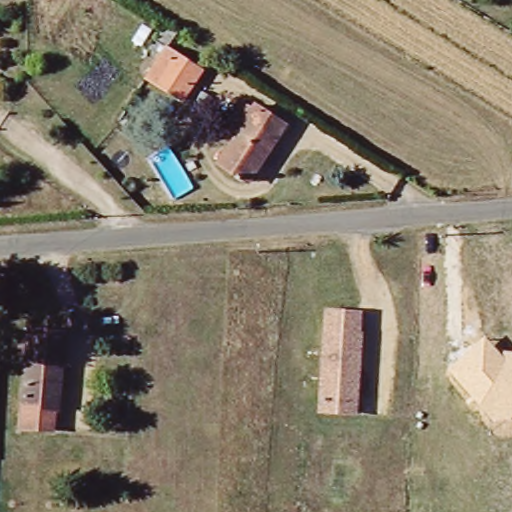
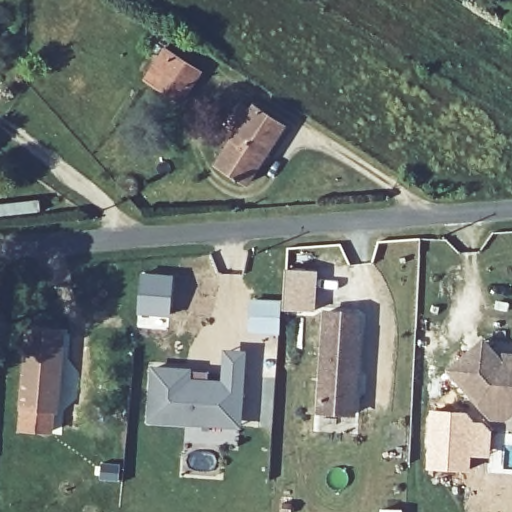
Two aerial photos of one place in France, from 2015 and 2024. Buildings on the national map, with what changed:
unchanged [(163,51),(198,74),(179,103),(144,80),(163,51)]
unchanged [(251,109),(281,128),(245,184),(215,164),(251,109)]
new [(140,272),(174,274),(167,331),(135,327),(140,272)]
new [(258,300),(287,302),(285,330),(257,328),(258,300)]
unchanged [(354,314),(353,337),(355,337),(351,413),(315,412),(321,312),(354,314)]
unchanged [(490,419),(447,369),(485,336),(498,351),(512,352),(512,417),(509,420),(490,419)]
unchanged [(57,340),(51,415),(47,414),(46,431),(25,430),(17,428),(24,337),(32,338),(53,340),(57,340)]
new [(152,417),(155,372),(192,373),(210,375),(210,385),(226,386),(226,375),(227,355),(246,356),(245,376),(243,401),(241,422),(224,422),(152,417)]
new [(426,408),(470,410),(475,420),(484,420),(490,421),(492,429),(490,458),(473,457),(471,471),(423,470),(426,408)]
new [(403,507),(403,512),(379,512),(378,508),(403,507)]

